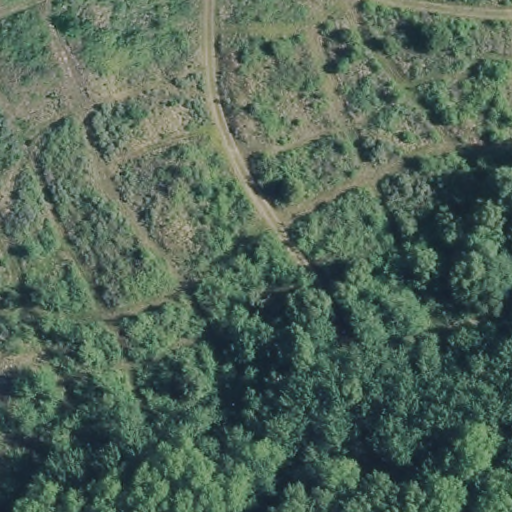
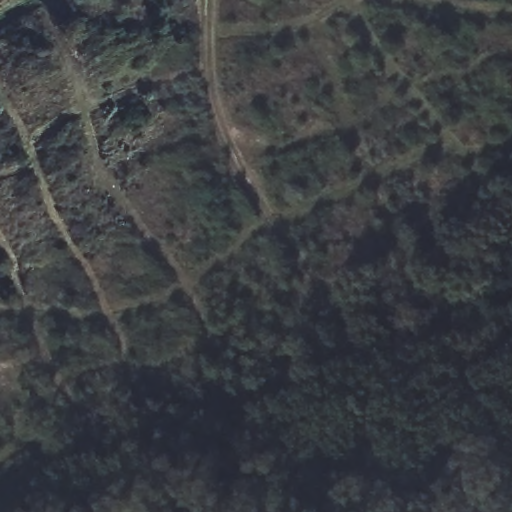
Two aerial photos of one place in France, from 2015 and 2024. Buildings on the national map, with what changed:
[]

